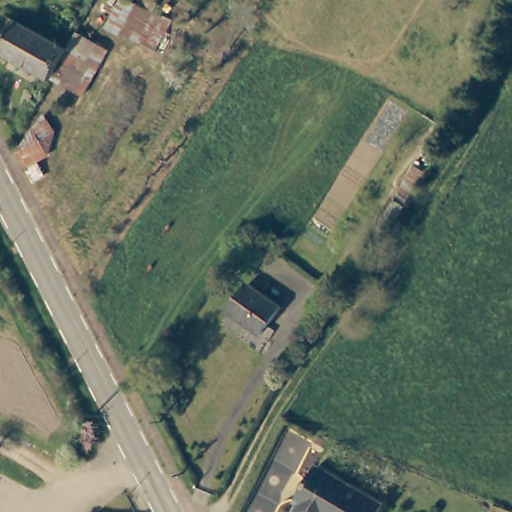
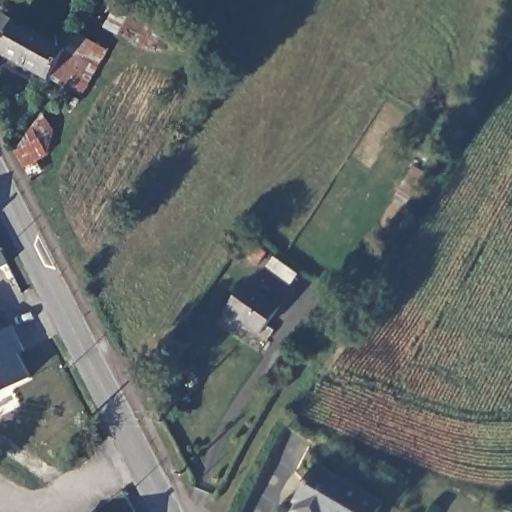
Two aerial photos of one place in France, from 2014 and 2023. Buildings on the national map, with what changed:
unchanged [(121,5),(136,13),(142,1),(155,9),(150,17),(169,26),(152,57),(106,33),(121,5)]
unchanged [(8,58),(17,40),(5,34),(13,20),(76,54),(60,85),(8,58)]
unchanged [(115,55),(91,102),(60,85),(76,54),(85,39),(115,55)]
unchanged [(47,116),(58,133),(52,154),(41,161),(49,175),(37,183),(21,151),(47,116)]
unchanged [(437,151),(391,225),(380,218),(425,144),(437,151)]
unchanged [(275,302),(255,331),(222,309),(242,281),(275,302)]
new [(11,328),(20,345),(14,349),(30,380),(0,395),(0,327),(2,333),(11,328)]
unchanged [(377,512),(293,512),(297,505),(295,503),(318,467),(382,503),(377,512)]

